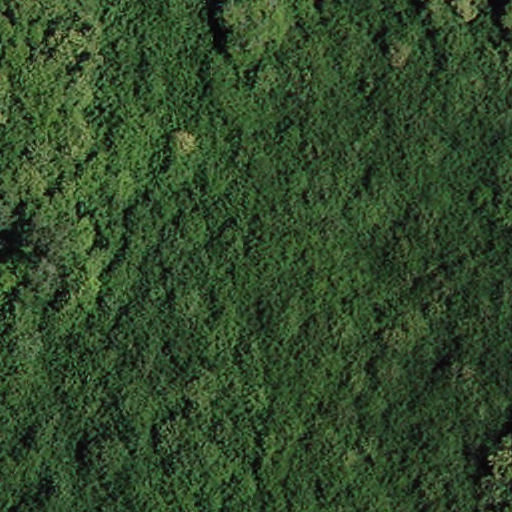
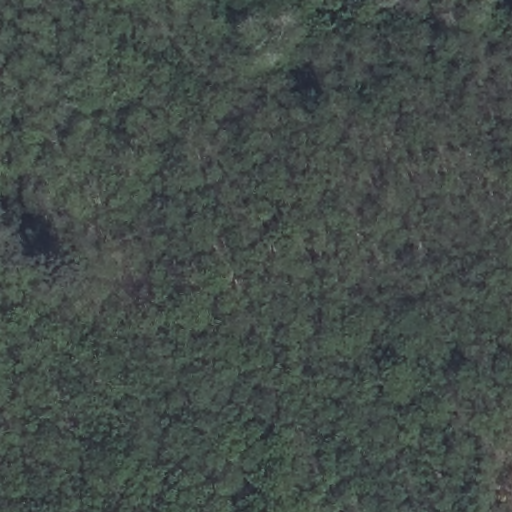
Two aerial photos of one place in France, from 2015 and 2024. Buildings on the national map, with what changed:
[]

